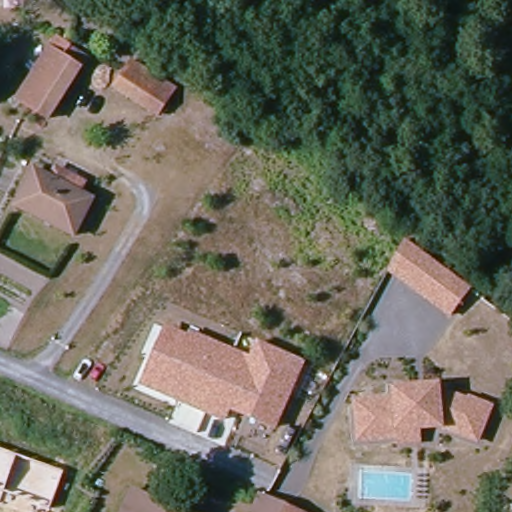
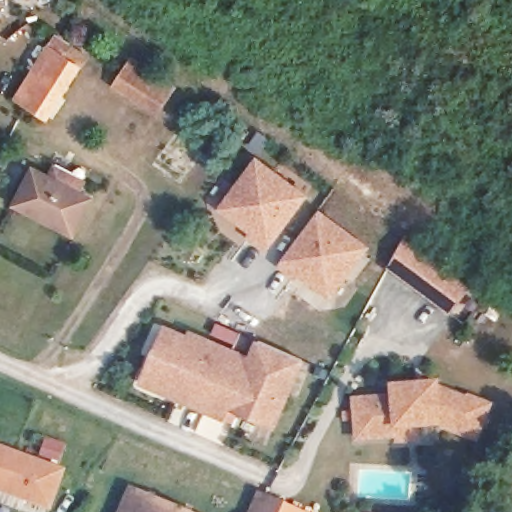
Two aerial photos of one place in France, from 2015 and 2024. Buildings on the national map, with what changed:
unchanged [(26,0),(0,3),(0,0),(26,0)]
unchanged [(17,101),(49,51),(62,60),(78,70),(46,120),(31,110),(17,101)]
unchanged [(168,93),(149,121),(109,94),(127,67),(168,93)]
new [(258,162),(262,165),(306,198),(268,250),(252,238),(254,234),(222,210),(246,178),(258,162)]
unchanged [(45,189),(50,178),(80,193),(74,203),(87,211),(68,247),(10,216),(29,181),(45,189)]
new [(319,214),(335,226),(368,250),(332,298),(300,274),(297,278),(280,266),(316,218),(319,214)]
unchanged [(471,290),(451,316),(390,269),(405,241),(471,290)]
unchanged [(258,339),(306,363),(275,430),(231,410),(226,423),(139,384),(165,327),(187,337),(190,332),(249,358),(258,339)]
unchanged [(475,399),(493,407),(478,439),(446,423),(404,428),(404,435),(365,439),(361,402),(400,397),(399,388),(421,386),(421,390),(429,389),(429,385),(442,384),(442,387),(474,401),(475,399)]
new [(52,510),(0,491),(0,445),(67,469),(52,510)]
unchanged [(120,496),(159,512),(114,512),(120,496)]
unchanged [(256,506),(270,512),(248,512),(251,504),(256,506)]

